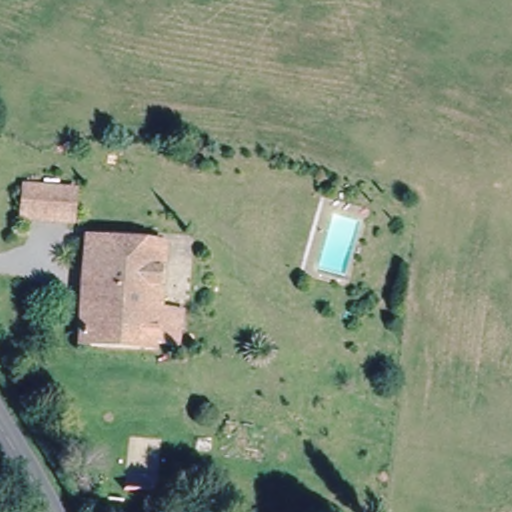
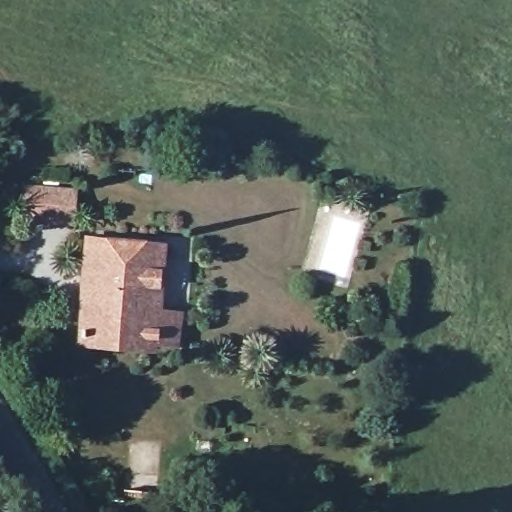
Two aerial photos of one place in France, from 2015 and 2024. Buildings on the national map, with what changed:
unchanged [(77,219),(27,215),(30,187),(79,191),(77,219)]
unchanged [(173,341),(154,340),(154,342),(78,337),(87,235),(160,240),(156,306),(179,308),(173,341)]

